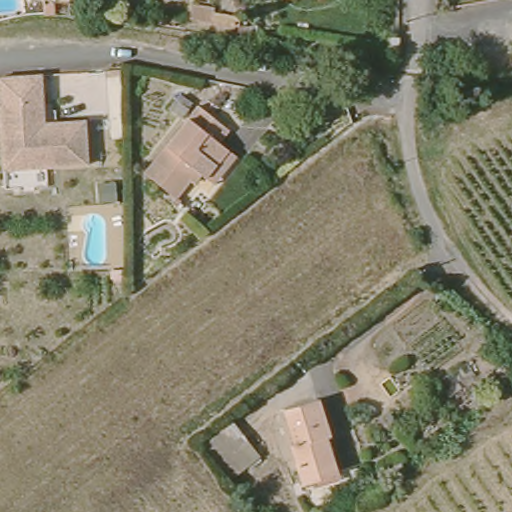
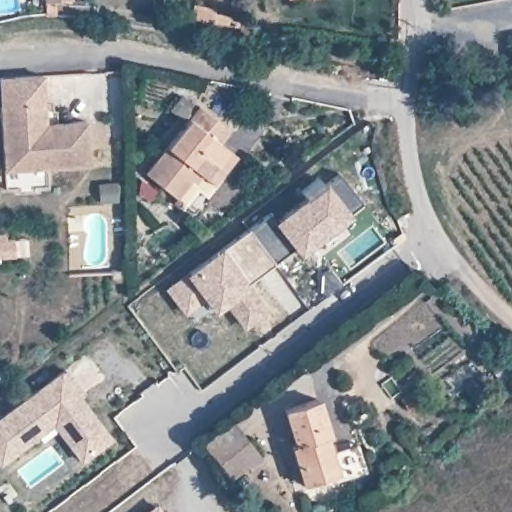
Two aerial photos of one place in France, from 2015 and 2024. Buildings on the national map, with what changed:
unchanged [(90,128),(91,167),(5,170),(0,83),(0,73),(48,72),(51,127),(90,128)]
unchanged [(223,186),(212,178),(202,171),(195,180),(182,196),(148,170),(204,102),(237,129),(227,140),(236,148),(247,157),(223,186)]
new [(248,228),(269,211),(274,217),(336,170),(359,200),(347,209),(351,215),(300,254),(294,247),(276,263),(248,228)]
new [(276,263),(248,284),(268,311),(243,330),(224,305),(215,312),(207,300),(185,316),(164,288),(186,273),(221,248),(248,228),(276,263)]
new [(81,462),(54,426),(1,466),(0,465),(0,415),(61,370),(114,437),(81,462)]
unchanged [(323,396),(333,434),(325,436),(334,470),(303,480),(293,443),(299,441),(289,403),(323,396)]
unchanged [(270,450),(240,480),(204,444),(235,414),(270,450)]
new [(164,512),(146,512),(158,503),(164,512)]

